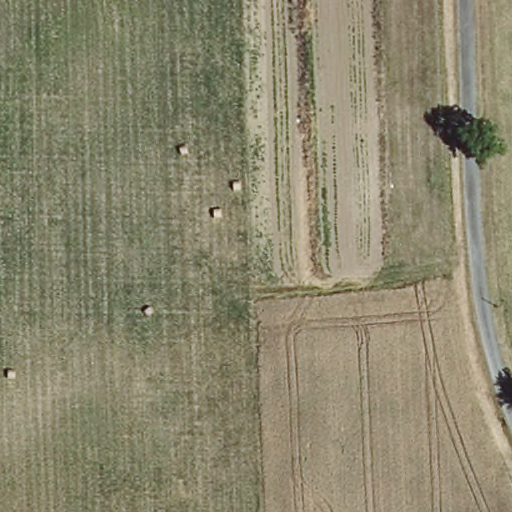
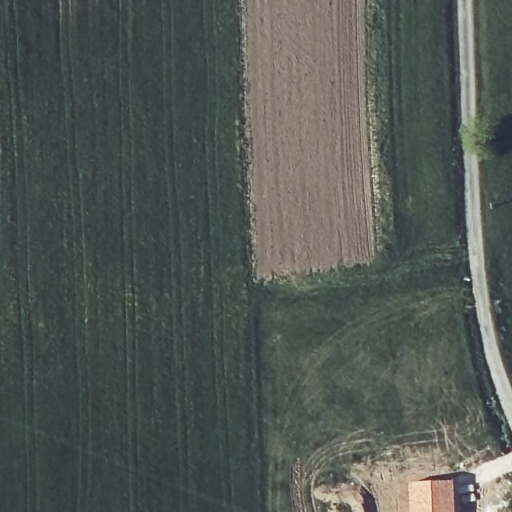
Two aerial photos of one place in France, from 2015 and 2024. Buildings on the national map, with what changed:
new [(453,480),(455,512),(410,512),(408,483),(453,480)]

